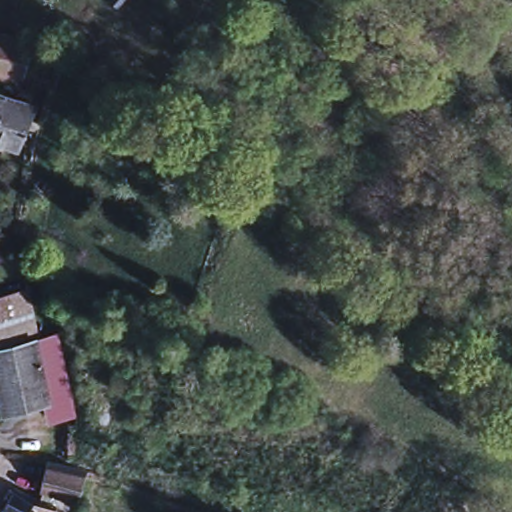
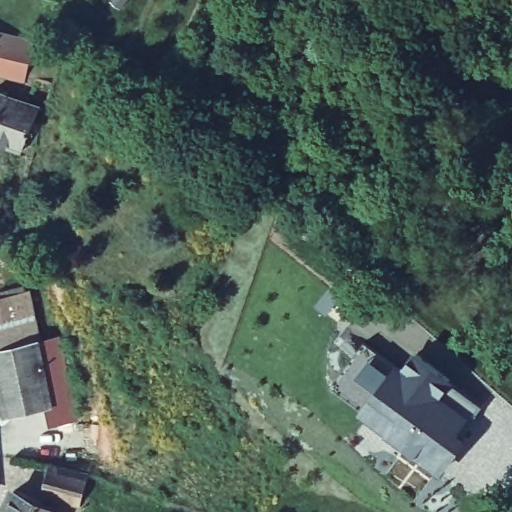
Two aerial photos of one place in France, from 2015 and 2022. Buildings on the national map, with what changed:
unchanged [(8,75),(0,73),(0,34),(18,38),(36,44),(26,80),(8,75)]
unchanged [(118,121),(101,112),(95,108),(105,92),(111,95),(128,105),(118,121)]
unchanged [(21,151),(0,142),(0,94),(10,98),(38,110),(21,151)]
unchanged [(0,172),(3,173),(0,180),(0,172)]
unchanged [(53,412),(0,417),(0,292),(35,285),(53,412)]
new [(388,402),(379,395),(394,376),(399,380),(417,355),(451,381),(450,382),(484,408),(469,426),(464,423),(454,435),(464,443),(441,472),(374,420),(388,402)]
unchanged [(88,477),(83,503),(46,495),(50,468),(88,477)]
unchanged [(15,490),(44,506),(56,512),(4,512),(8,506),(15,490)]

